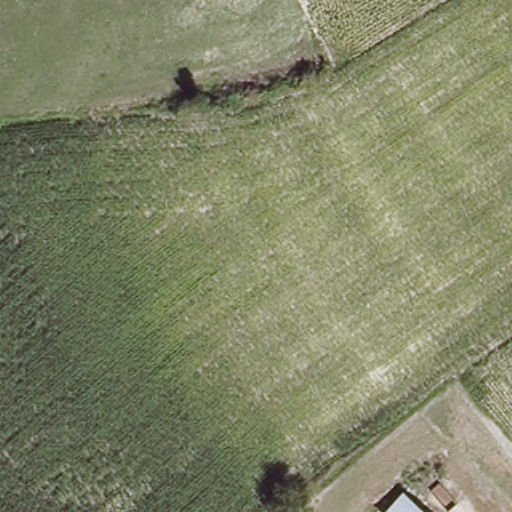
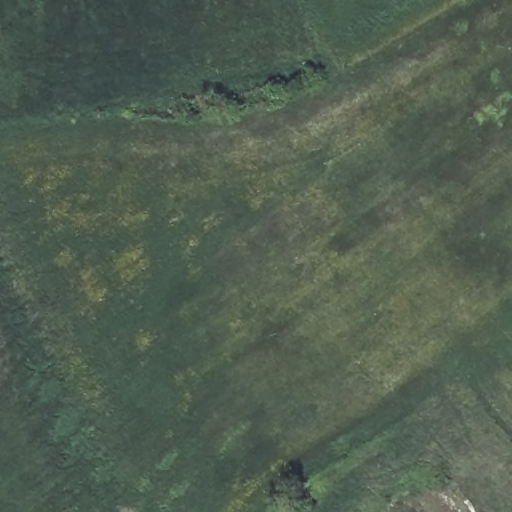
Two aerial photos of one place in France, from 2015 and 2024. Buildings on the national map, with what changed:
demolished [(407,496),(423,512),(392,512),(407,496)]

